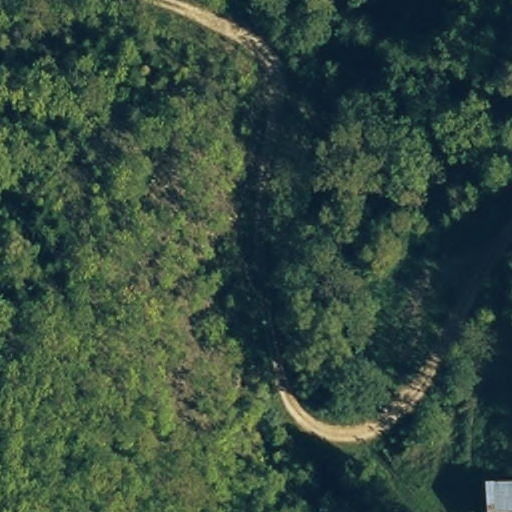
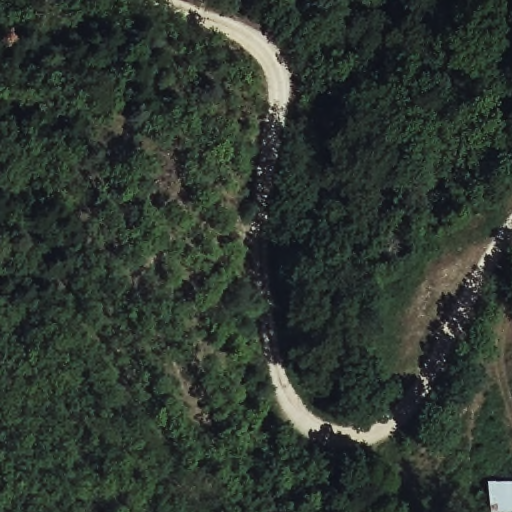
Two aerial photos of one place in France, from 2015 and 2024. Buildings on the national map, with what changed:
unchanged [(512,473),(512,512),(495,512),(484,475),(512,473)]

